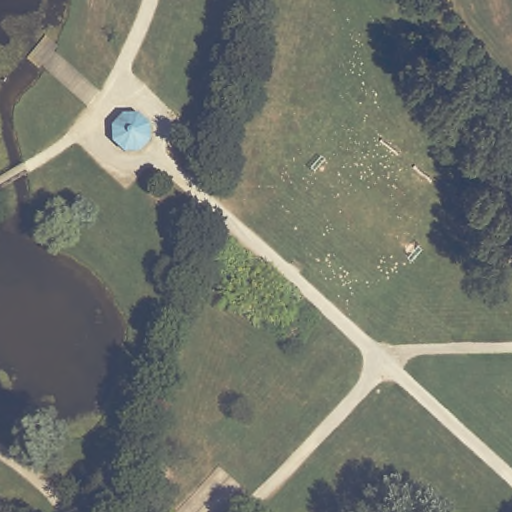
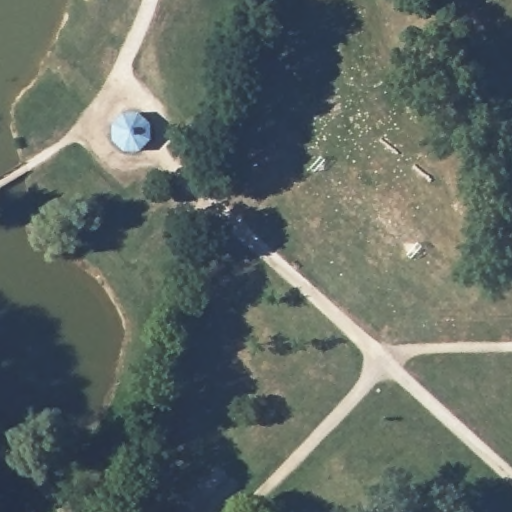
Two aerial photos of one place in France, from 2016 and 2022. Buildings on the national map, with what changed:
unchanged [(113,139),(114,124),(123,113),(141,112),(152,119),(152,136),(142,148),(126,148),(113,139)]

